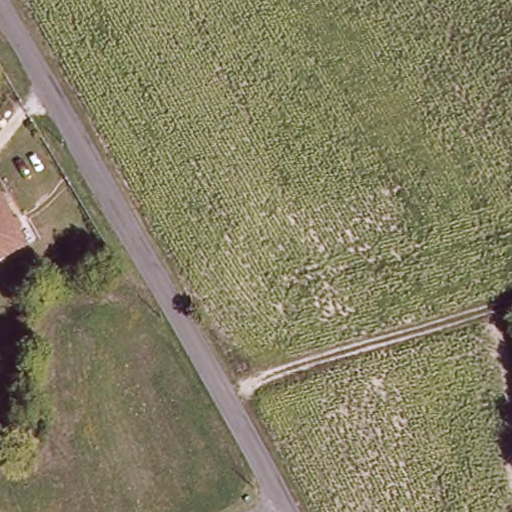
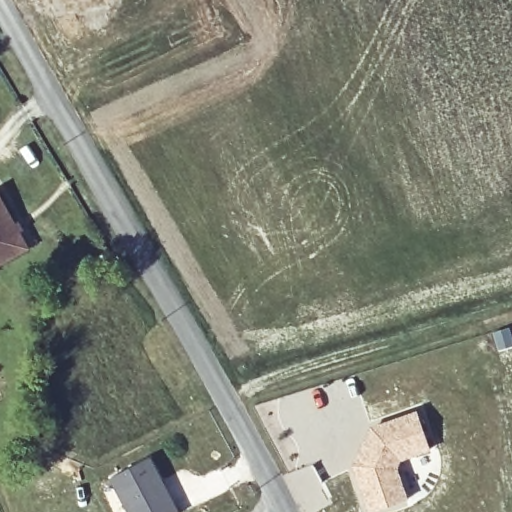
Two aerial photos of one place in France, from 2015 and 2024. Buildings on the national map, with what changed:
unchanged [(29,251),(0,267),(0,197),(29,251)]
new [(351,465),(354,460),(368,425),(417,409),(431,450),(400,461),(399,470),(409,499),(380,512),(363,512),(347,467),(351,465)]
new [(149,456),(179,512),(126,512),(107,478),(149,456)]

